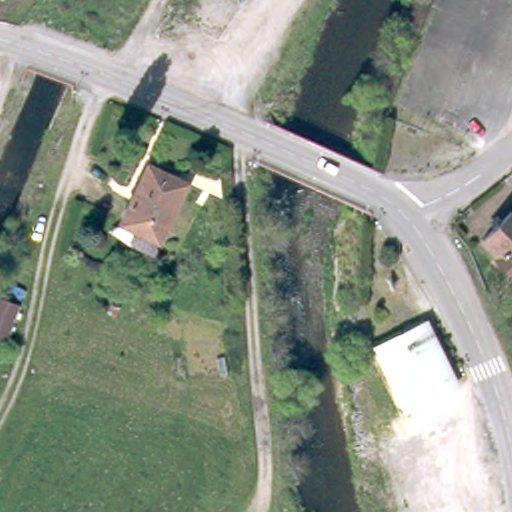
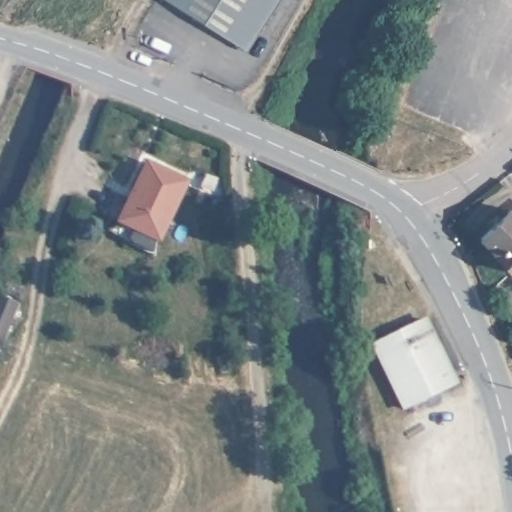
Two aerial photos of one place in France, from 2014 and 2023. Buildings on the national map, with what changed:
demolished [(211,29),(192,54),(189,52),(155,29),(173,3),(169,0),(245,0),(221,35),(211,29)]
new [(276,0),(245,51),(163,0),(276,0)]
unchanged [(146,164),(186,182),(158,239),(156,238),(120,222),(146,164)]
unchanged [(495,250),(496,249),(481,233),(511,204),(512,205),(512,269),(495,250)]
unchanged [(10,349),(0,346),(0,310),(7,294),(29,303),(10,349)]
unchanged [(424,387),(427,396),(405,407),(372,339),(425,314),(452,374),(424,387)]

